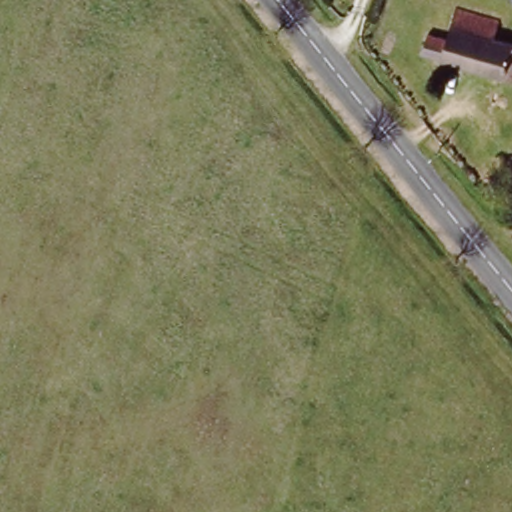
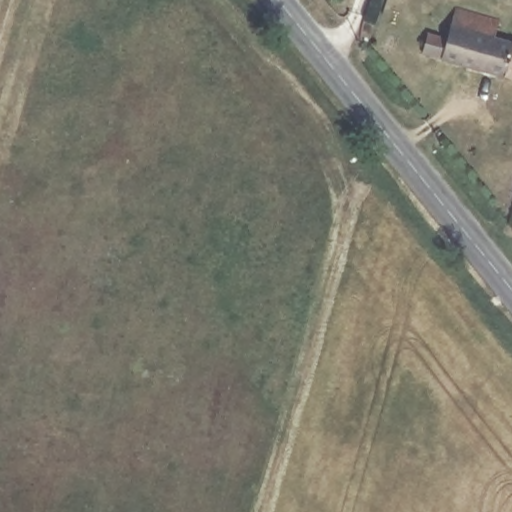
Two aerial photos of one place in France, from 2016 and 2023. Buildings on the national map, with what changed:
unchanged [(512,46),(512,73),(506,72),(503,76),(418,53),(424,32),(444,38),(452,11),(496,22),(491,40),(512,46)]

